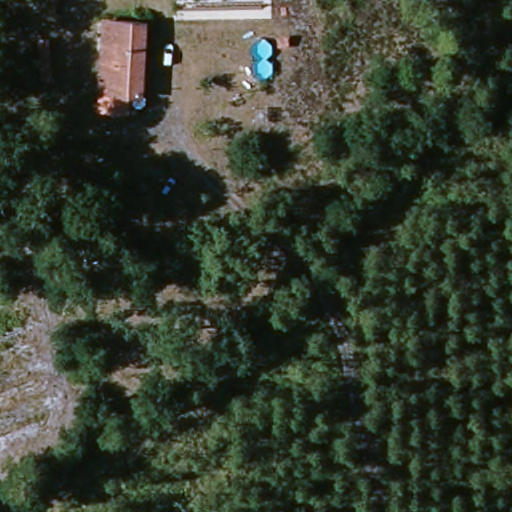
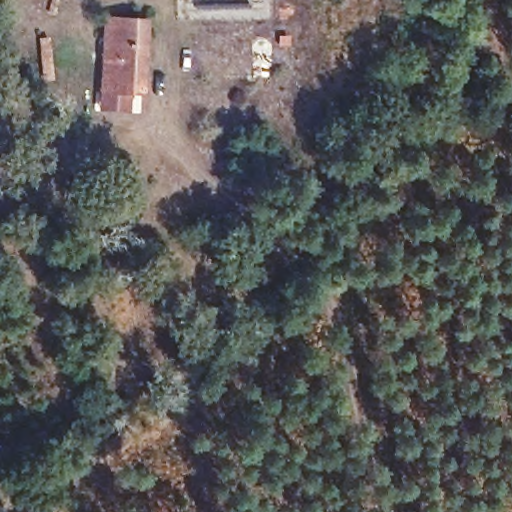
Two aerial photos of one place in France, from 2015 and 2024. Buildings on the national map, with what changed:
unchanged [(105,86),(106,15),(155,14),(150,89),(105,86)]

